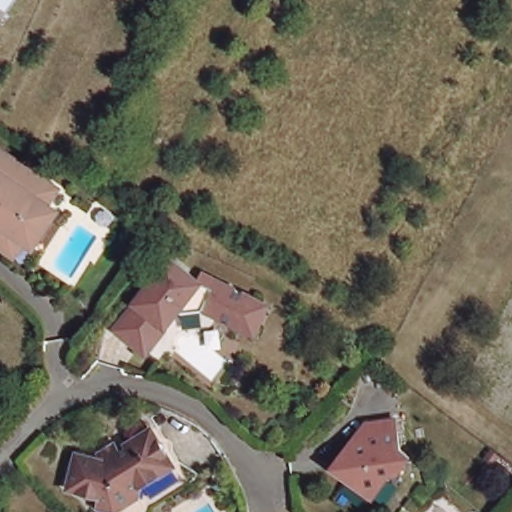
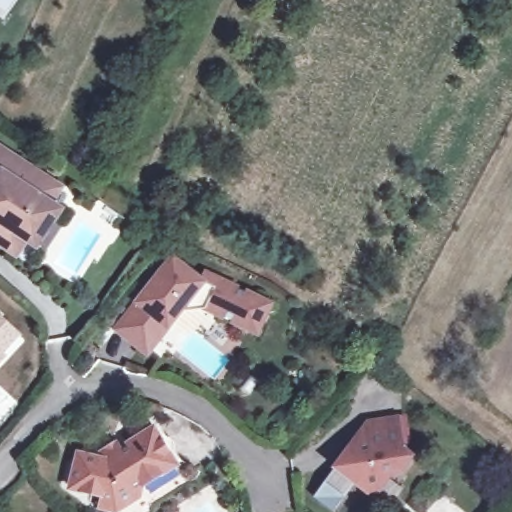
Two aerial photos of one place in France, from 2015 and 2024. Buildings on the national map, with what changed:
unchanged [(0,139),(49,172),(58,178),(48,193),(46,196),(48,197),(56,202),(35,233),(27,228),(25,227),(24,229),(14,245),(5,239),(0,236),(0,139)]
unchanged [(143,349),(111,324),(170,252),(201,278),(212,283),(215,275),(253,292),(252,294),(265,300),(253,326),(240,321),(240,322),(200,304),(179,307),(165,324),(154,336),(143,349)]
new [(0,364),(0,313),(25,338),(0,364)]
unchanged [(393,473),(375,497),(336,469),(356,441),(370,440),(368,423),(399,418),(403,448),(415,456),(401,474),(393,473)]
unchanged [(178,463),(141,486),(140,497),(116,512),(100,509),(102,497),(70,488),(78,452),(105,459),(110,456),(105,448),(118,439),(123,447),(153,427),(178,463)]

